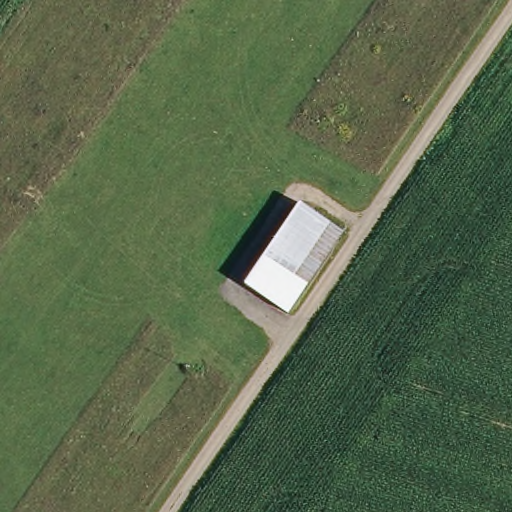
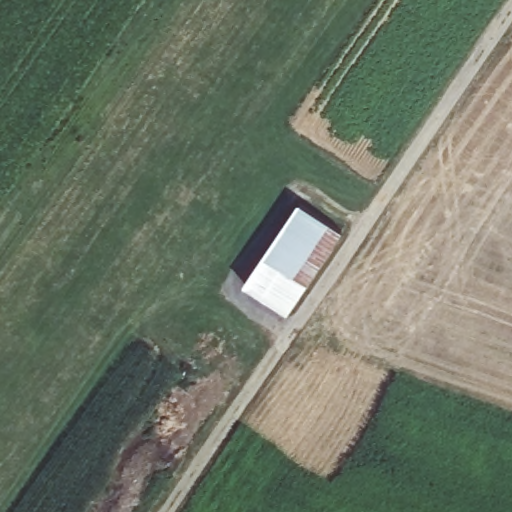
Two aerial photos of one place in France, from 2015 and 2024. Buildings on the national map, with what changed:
unchanged [(343,235),(289,316),(246,285),(301,202),(343,235)]

